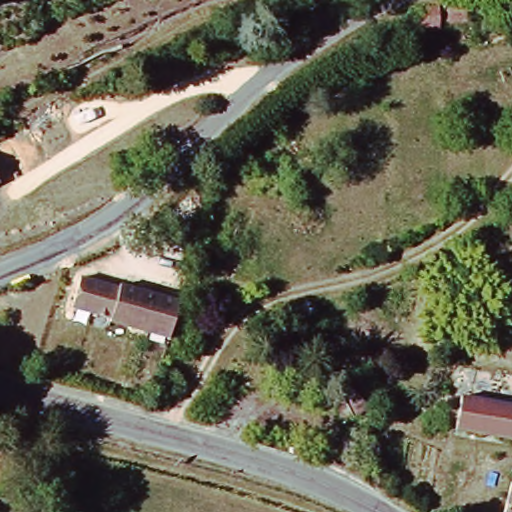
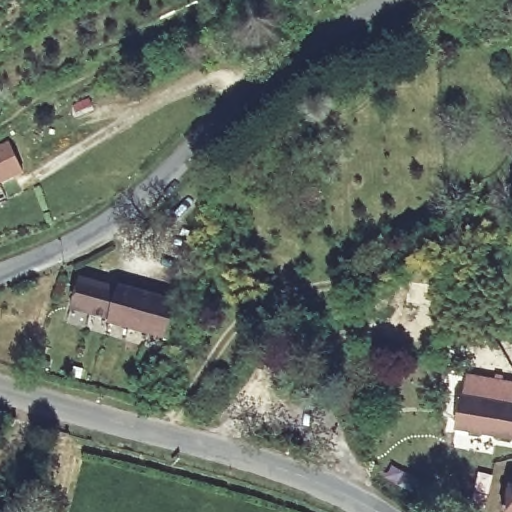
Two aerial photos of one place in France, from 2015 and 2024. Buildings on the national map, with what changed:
unchanged [(453,3),(474,5),(472,21),(450,20),(453,3)]
unchanged [(420,7),(443,9),(441,29),(419,28),(420,7)]
unchanged [(120,286),(121,281),(184,298),(170,344),(108,327),(110,321),(70,311),(82,278),(120,286)]
unchanged [(458,395),(473,396),(477,366),(512,373),(512,436),(453,426),(458,395)]
unchanged [(373,409),(361,418),(345,395),(357,385),(373,409)]
unchanged [(512,484),(512,512),(503,512),(510,484),(512,484)]

